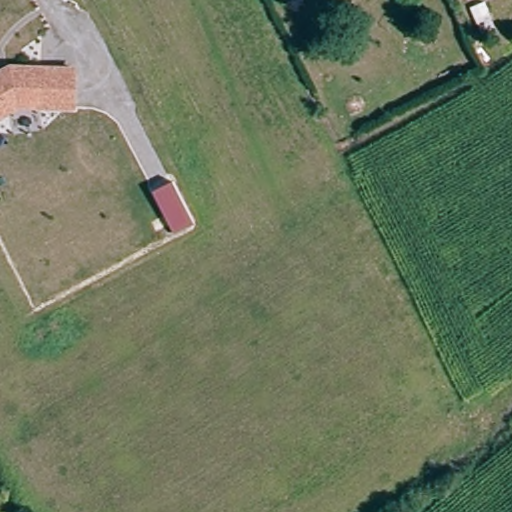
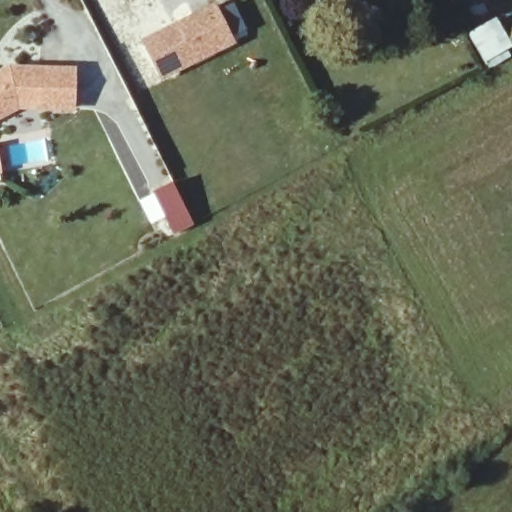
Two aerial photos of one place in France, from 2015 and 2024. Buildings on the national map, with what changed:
new [(225,1),(227,7),(235,4),(248,33),(244,35),(247,41),(240,45),(164,81),(144,40),(216,5),(225,1)]
unchanged [(0,75),(14,68),(58,70),(78,71),(77,110),(56,109),(22,107),(0,118),(0,75)]
unchanged [(175,235),(152,191),(172,181),(195,224),(175,235)]

